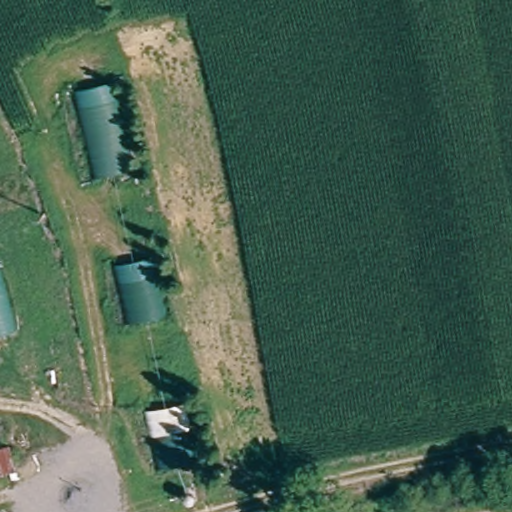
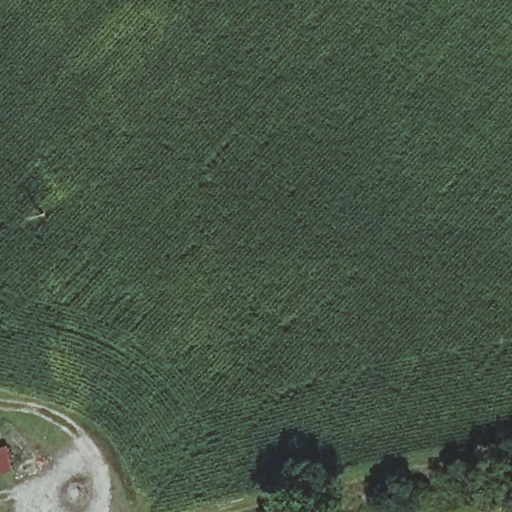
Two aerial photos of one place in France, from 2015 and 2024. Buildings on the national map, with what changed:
demolished [(69,86),(104,82),(123,166),(89,175),(69,86)]
demolished [(110,259),(146,255),(160,315),(124,322),(110,259)]
demolished [(10,325),(0,328),(0,290),(10,325)]
unchanged [(5,444),(10,469),(0,472),(0,445),(5,444)]

